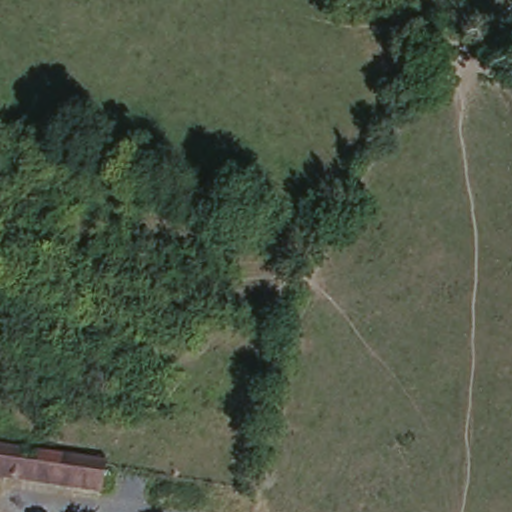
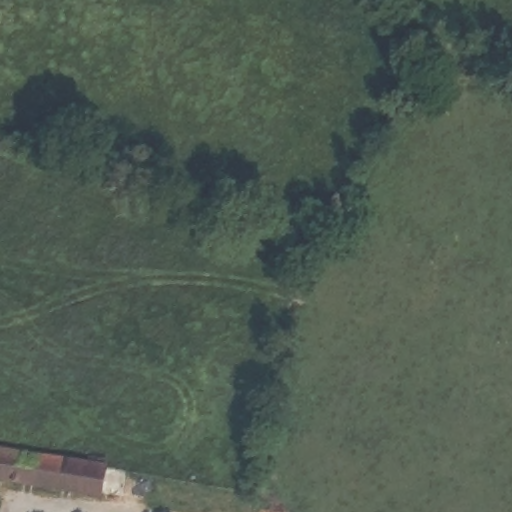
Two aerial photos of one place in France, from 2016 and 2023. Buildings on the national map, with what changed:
unchanged [(103,490),(10,480),(0,477),(0,454),(14,458),(83,462),(105,465),(103,490)]

